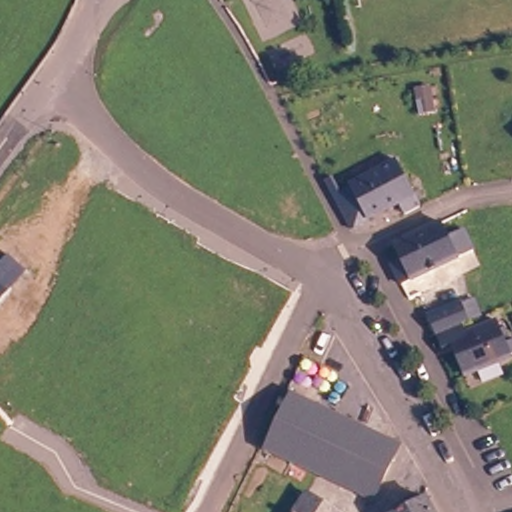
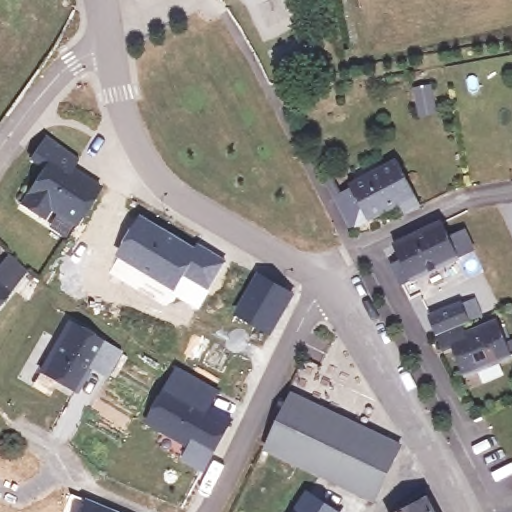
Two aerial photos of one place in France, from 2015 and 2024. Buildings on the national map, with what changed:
unchanged [(432,80),(437,105),(422,108),(418,83),(432,80)]
new [(80,156),(73,167),(103,185),(78,227),(51,211),(46,218),(20,203),(39,170),(27,163),(46,134),(80,156)]
unchanged [(352,187),(351,184),(398,160),(422,207),(405,215),(400,203),(351,228),(335,196),(352,187)]
new [(115,255),(140,213),(195,245),(197,241),(226,259),(197,308),(147,275),(139,287),(109,270),(115,255)]
unchanged [(442,223),(447,236),(462,229),(472,249),(402,284),(392,263),(403,258),(396,243),(442,223)]
unchanged [(7,254),(27,270),(0,304),(0,261),(7,254)]
new [(257,270),(296,292),(270,335),(233,314),(257,270)]
unchanged [(512,356),(512,358),(464,377),(452,348),(443,351),(437,336),(429,317),(462,304),(473,299),(481,318),(469,322),(462,325),(466,333),(497,320),(512,356)]
new [(124,350),(108,377),(88,368),(76,390),(40,372),(68,319),(124,350)]
new [(220,391),(213,407),(233,419),(203,472),(180,460),(187,447),(144,423),(177,367),(220,391)]
unchanged [(292,393),(403,446),(376,501),(371,498),(267,448),(292,393)]
new [(74,494),(119,512),(68,512),(74,494)]
unchanged [(331,512),(296,512),(308,495),(331,512)]
unchanged [(429,495),(438,512),(398,512),(429,495)]

